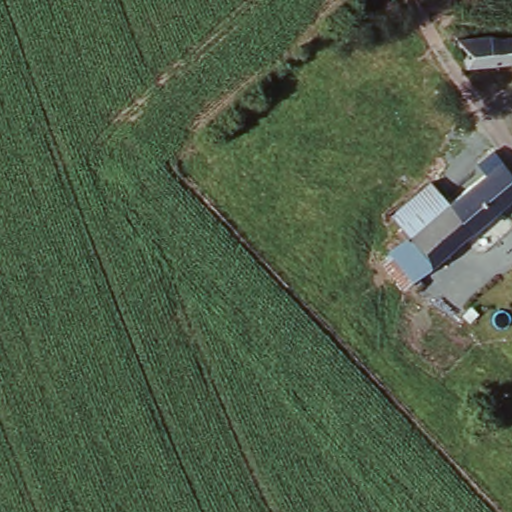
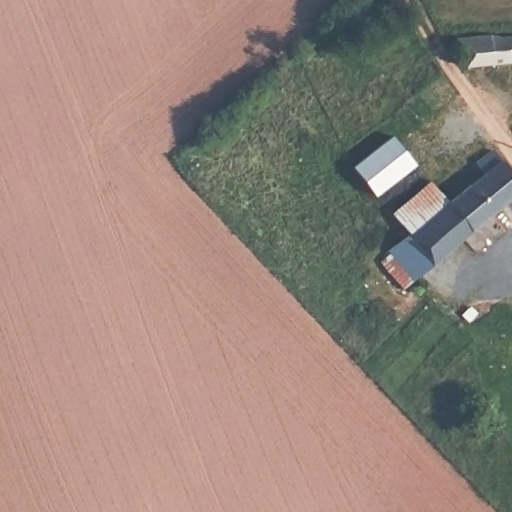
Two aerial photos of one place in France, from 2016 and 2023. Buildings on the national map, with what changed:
unchanged [(462,39),(493,38),(494,43),(512,41),(512,65),(497,66),(470,69),(464,61),(462,39)]
new [(414,165),(374,197),(352,167),(390,135),(414,165)]
unchanged [(432,268),(408,240),(410,237),(449,205),(485,176),(476,165),(492,152),(512,176),(512,200),(432,268)]
unchanged [(410,237),(392,216),(430,183),(449,205),(410,237)]
unchanged [(404,291),(382,265),(408,240),(432,268),(404,291)]

